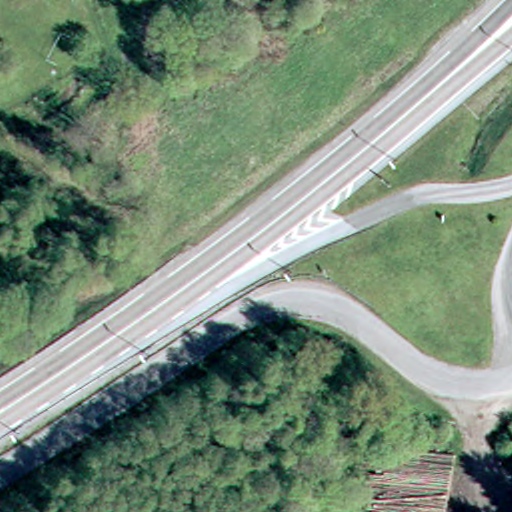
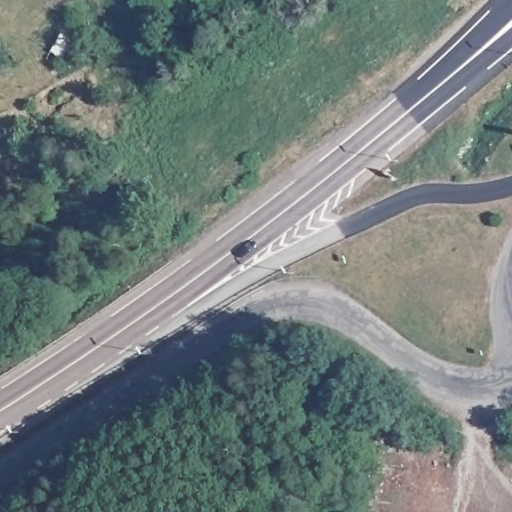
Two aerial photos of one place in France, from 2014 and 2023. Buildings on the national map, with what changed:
[]

